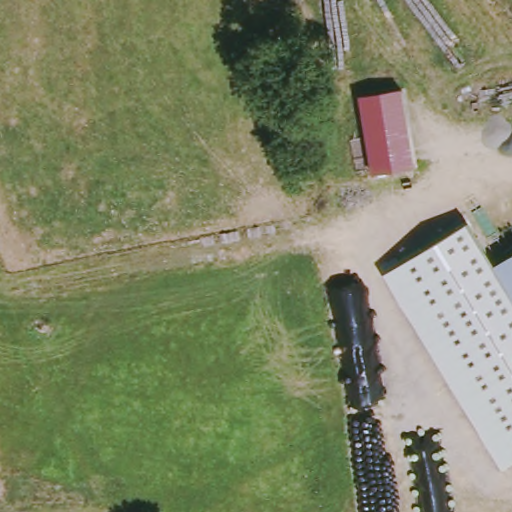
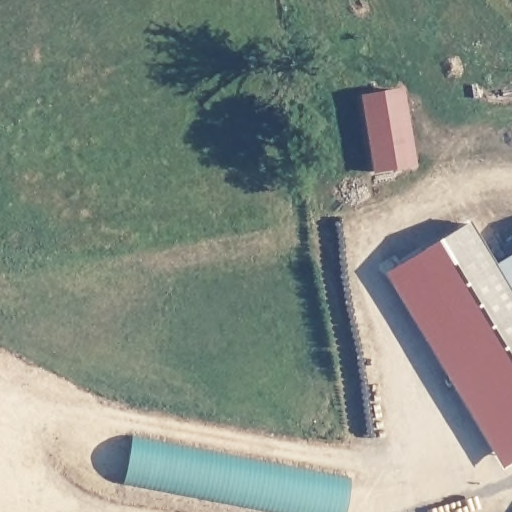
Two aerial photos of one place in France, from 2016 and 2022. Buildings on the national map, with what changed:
unchanged [(401,94),(416,167),(375,176),(359,103),(401,94)]
unchanged [(503,471),(386,275),(408,262),(470,224),(496,265),(512,256),(512,466),(503,471)]
new [(350,482),(345,512),(291,512),(123,480),(131,441),(350,482)]

